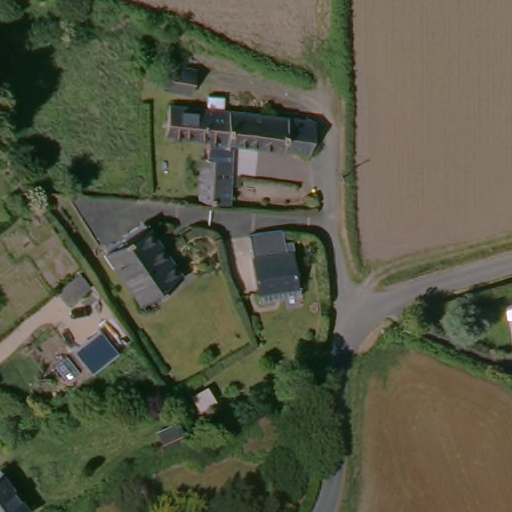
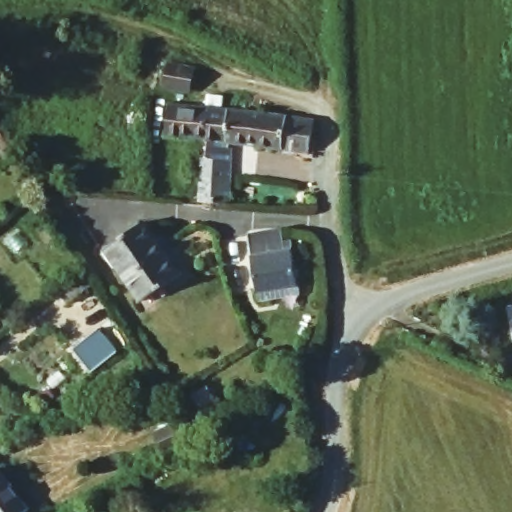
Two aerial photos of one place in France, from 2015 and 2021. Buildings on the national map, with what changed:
unchanged [(307,120),(307,149),(164,137),(164,132),(154,132),(155,124),(165,125),(166,105),(242,112),(307,120)]
unchanged [(237,166),(232,209),(222,208),(192,206),(197,162),(237,166)]
unchanged [(177,278),(131,302),(100,245),(146,220),(177,278)]
unchanged [(299,294),(257,301),(248,241),(273,237),(280,237),(282,243),(292,241),(299,294)]
unchanged [(78,269),(94,288),(67,307),(53,290),(78,269)]
unchanged [(92,372),(72,347),(100,328),(119,352),(92,372)]
unchanged [(21,512),(0,512),(0,480),(21,512)]

